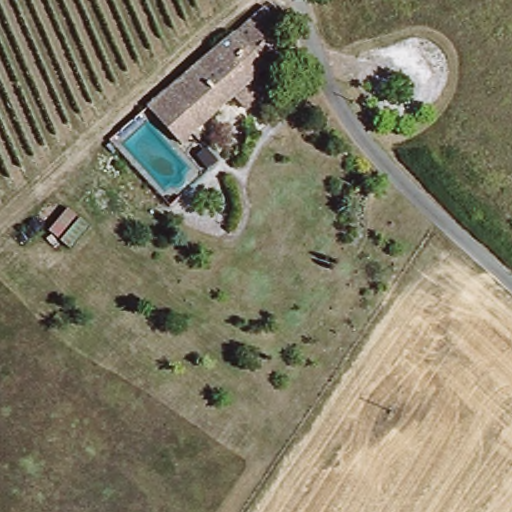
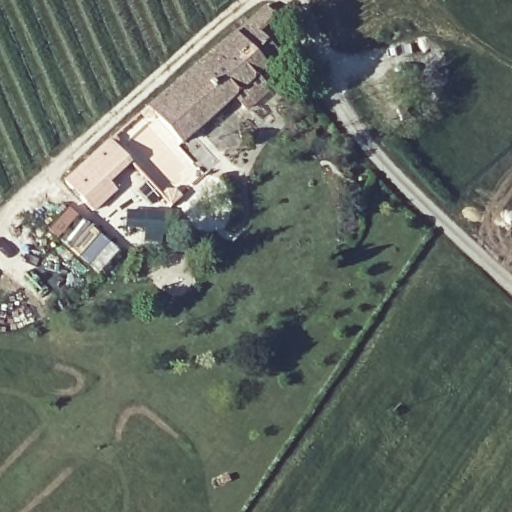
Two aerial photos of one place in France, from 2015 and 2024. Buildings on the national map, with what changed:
unchanged [(243,107),(231,95),(176,143),(144,107),(264,4),(273,14),(255,29),(277,51),(251,75),(264,87),(243,107)]
new [(108,139),(129,164),(108,184),(115,193),(92,212),(62,182),(108,139)]
new [(49,232),(66,211),(116,252),(97,273),(49,232)]

